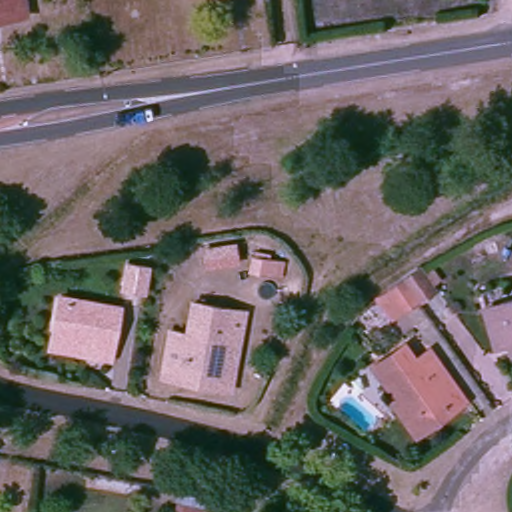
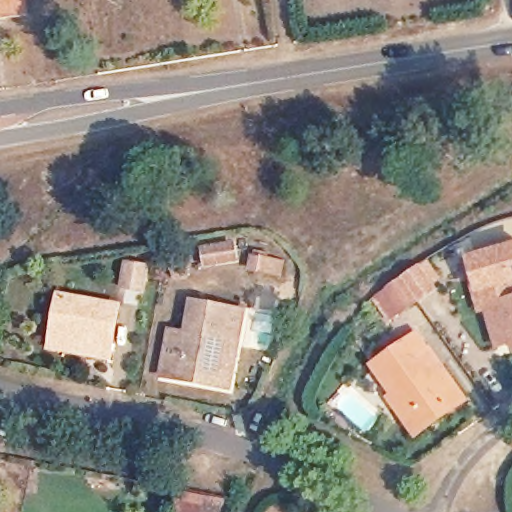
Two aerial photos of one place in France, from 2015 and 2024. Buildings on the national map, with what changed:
unchanged [(0,23),(0,0),(23,0),(26,19),(0,23)]
new [(482,310),(484,314),(477,316),(462,265),(470,262),(468,256),(512,244),(512,300),(482,310)]
unchanged [(133,280),(138,252),(159,257),(154,283),(133,280)]
unchanged [(369,293),(418,264),(427,277),(437,291),(414,305),(388,321),(380,311),(368,295),(369,293)]
unchanged [(215,384),(163,375),(170,330),(188,332),(193,300),(244,309),(240,327),(230,387),(215,384)]
unchanged [(512,300),(512,352),(509,345),(495,347),(482,310),(512,300)]
unchanged [(54,337),(61,301),(119,311),(109,363),(93,360),(52,351),(54,337)]
unchanged [(409,432),(384,405),(389,401),(365,367),(404,340),(428,372),(437,367),(456,397),(409,432)]
unchanged [(208,500),(206,512),(179,512),(182,496),(208,500)]

